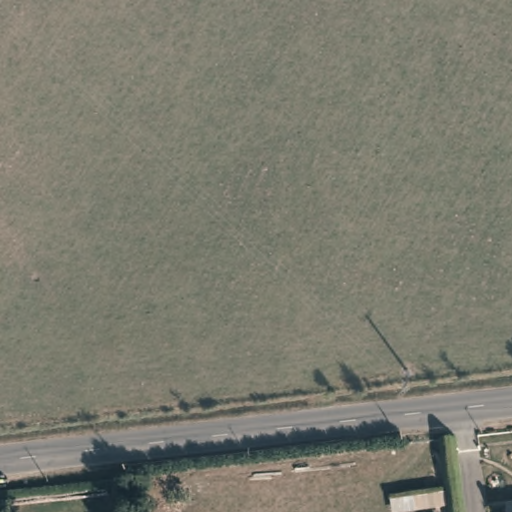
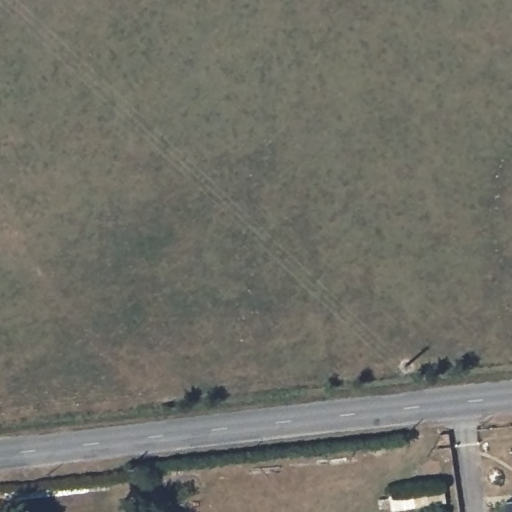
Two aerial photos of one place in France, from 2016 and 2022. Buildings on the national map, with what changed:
unchanged [(512,512),(510,512),(508,503),(512,502),(512,512)]

